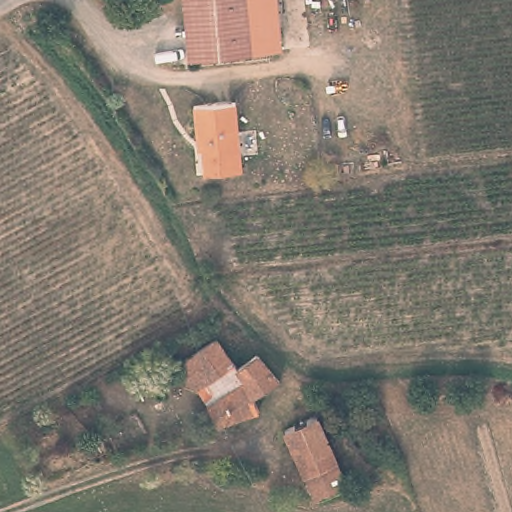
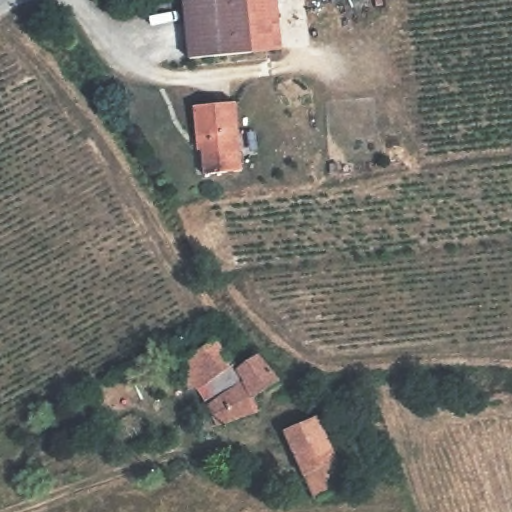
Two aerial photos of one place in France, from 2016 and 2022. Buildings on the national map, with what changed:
unchanged [(188,0),(280,0),(285,45),(257,48),(195,55),(188,1),(188,0)]
unchanged [(235,97),(244,165),(207,170),(203,136),(197,137),(193,102),(235,97)]
unchanged [(202,385),(189,385),(177,365),(217,335),(240,365),(260,351),(281,378),(256,394),(263,408),(219,420),(209,400),(223,391),(213,377),(204,383),(202,385)]
unchanged [(321,413),(350,485),(314,498),(286,427),(321,413)]

